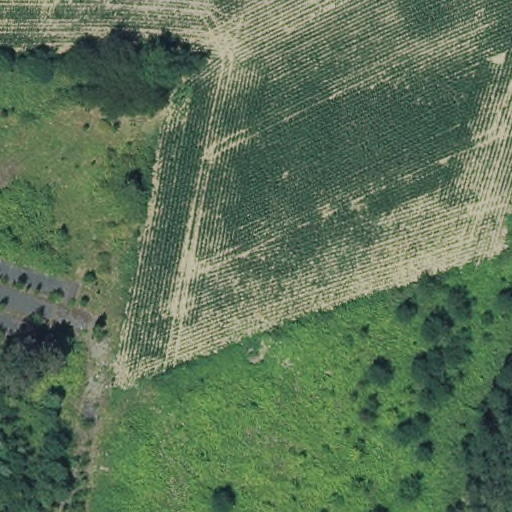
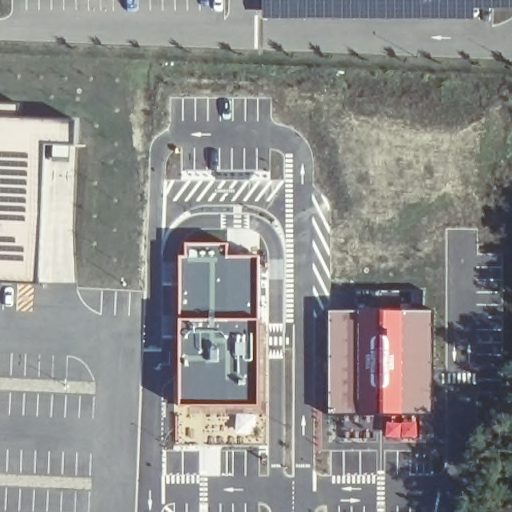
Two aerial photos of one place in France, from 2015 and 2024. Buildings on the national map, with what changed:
new [(512,8),(473,7),(473,19),(261,16),(260,0),(512,0),(512,8)]
new [(71,120),(69,157),(52,156),(53,145),(41,144),(33,281),(0,280),(0,118),(71,120)]
new [(178,256),(183,256),(183,242),(229,242),(229,255),(259,255),(261,343),(259,408),(177,407),(178,256)]
new [(371,308),(432,310),(432,414),(371,415),(329,414),(328,310),(371,308)]

